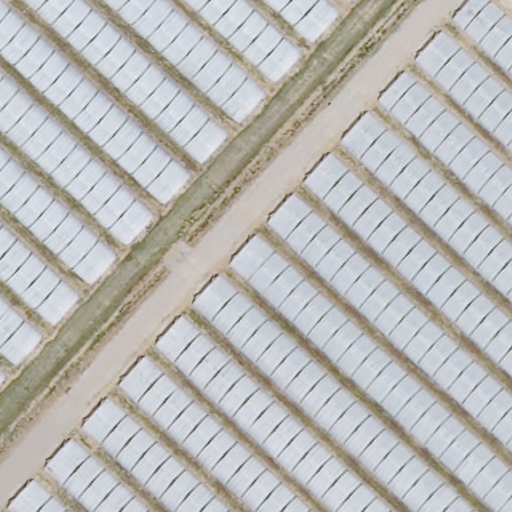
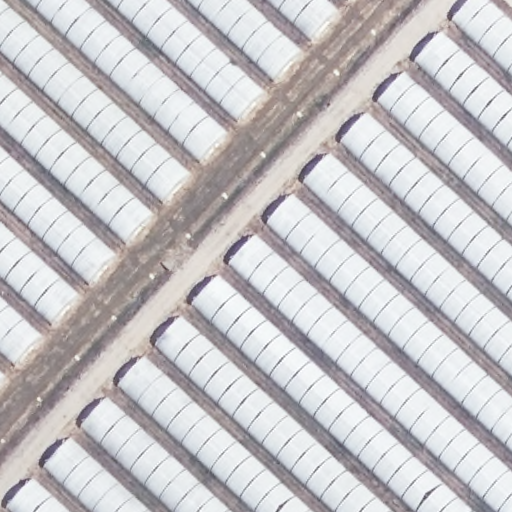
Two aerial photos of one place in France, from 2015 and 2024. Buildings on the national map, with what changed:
unchanged [(355,0),(0,390),(0,0),(355,0)]
unchanged [(11,506),(470,0),(493,0),(512,17),(512,512),(17,512),(11,506)]

